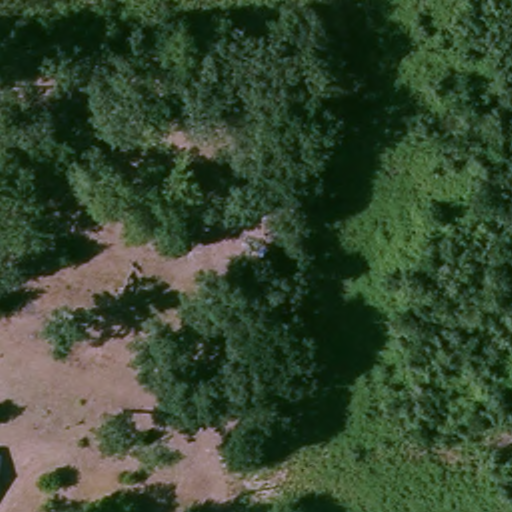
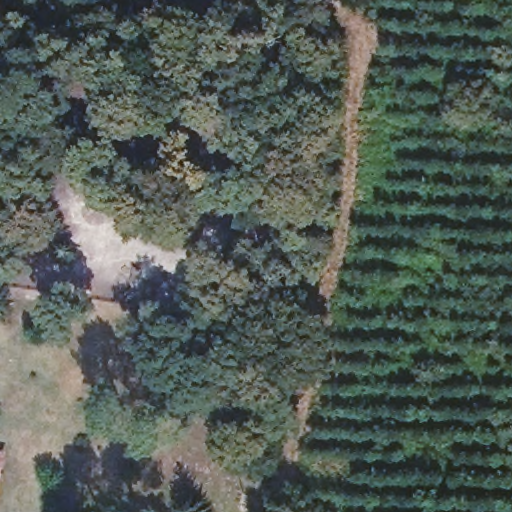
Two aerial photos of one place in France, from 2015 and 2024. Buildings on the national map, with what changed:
unchanged [(0,489),(0,455),(6,457),(0,489)]

